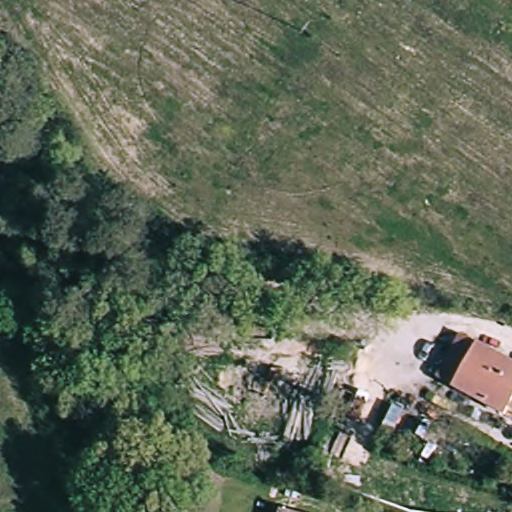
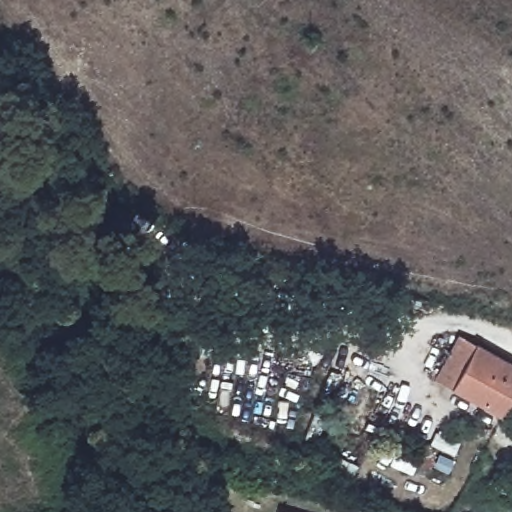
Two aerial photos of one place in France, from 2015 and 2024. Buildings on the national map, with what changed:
unchanged [(456,333),(512,361),(512,391),(501,412),(432,377),(456,333)]
unchanged [(169,498),(191,503),(189,512),(165,512),(169,498)]
unchanged [(277,508),(294,512),(275,512),(277,508)]

